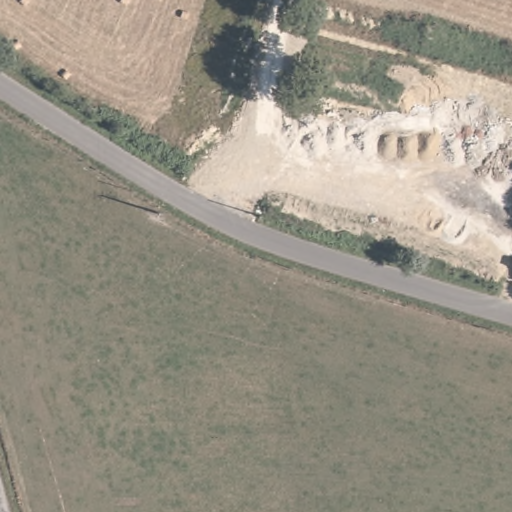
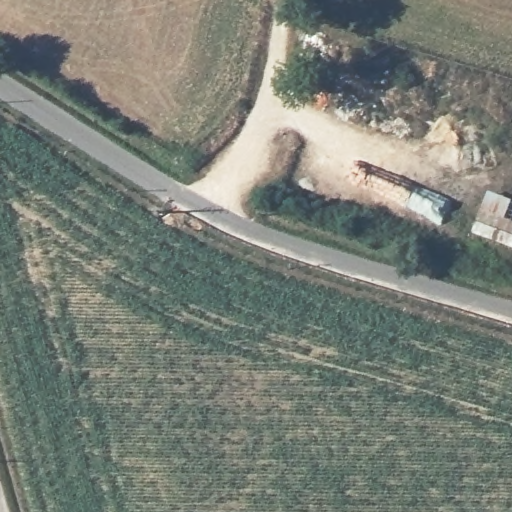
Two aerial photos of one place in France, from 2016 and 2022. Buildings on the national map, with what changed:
[]

